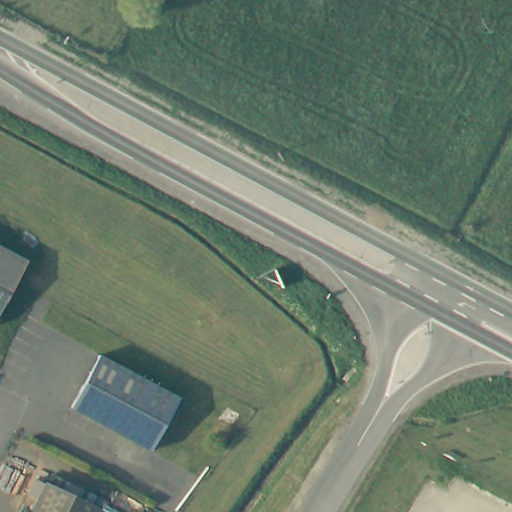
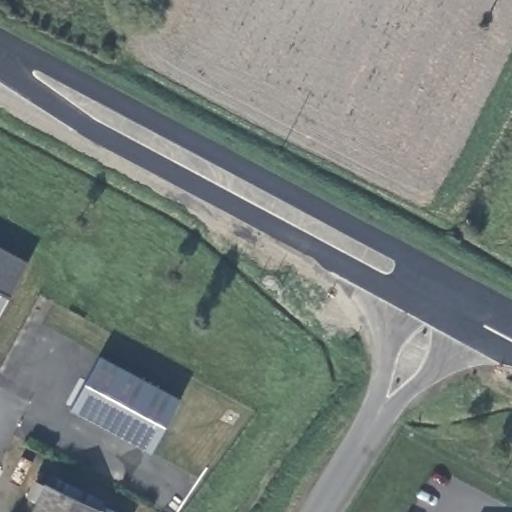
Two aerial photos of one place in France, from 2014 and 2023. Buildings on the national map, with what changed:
unchanged [(27,265),(0,319),(0,249),(27,265)]
unchanged [(181,400),(149,452),(71,410),(100,356),(181,400)]
unchanged [(24,512),(32,498),(25,493),(34,478),(95,512),(24,512)]

